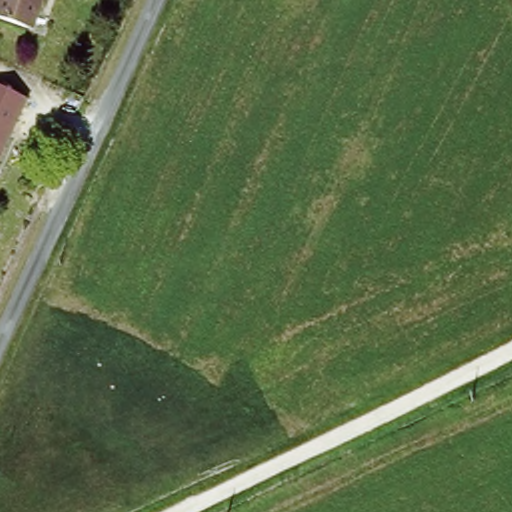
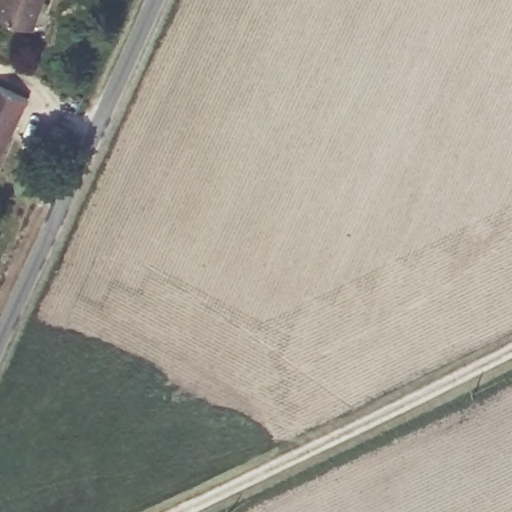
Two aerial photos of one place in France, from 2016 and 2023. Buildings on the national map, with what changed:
unchanged [(0,17),(0,0),(42,0),(36,14),(31,29),(22,26),(0,17)]
unchanged [(0,168),(0,84),(31,98),(0,168)]

